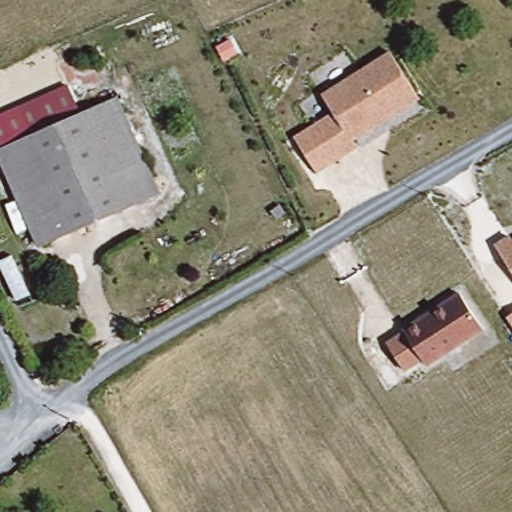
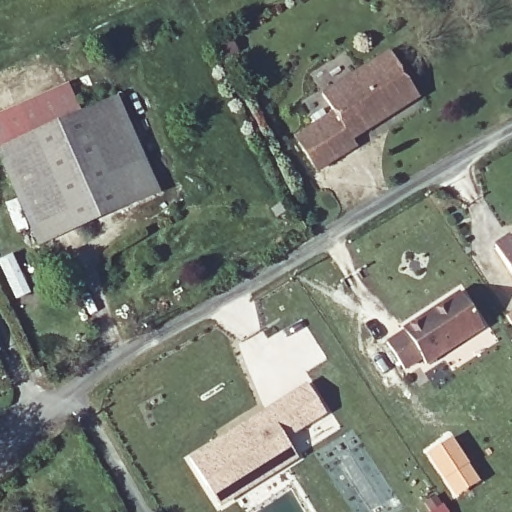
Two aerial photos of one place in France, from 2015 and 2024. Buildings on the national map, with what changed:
unchanged [(356,152),(316,178),(294,146),(333,119),(321,101),(388,59),(418,104),(352,147),(356,152)]
unchanged [(39,244),(0,157),(0,117),(64,87),(79,120),(121,98),(163,189),(39,244)]
unchanged [(496,251),(511,242),(512,244),(512,276),(496,251)]
unchanged [(422,363),(403,375),(385,347),(403,336),(401,333),(459,297),(483,332),(425,369),(422,363)]
new [(512,315),(512,322),(509,317),(512,315)]
new [(207,486),(190,458),(309,385),(325,412),(285,437),(297,457),(248,487),(219,505),(207,486)]

